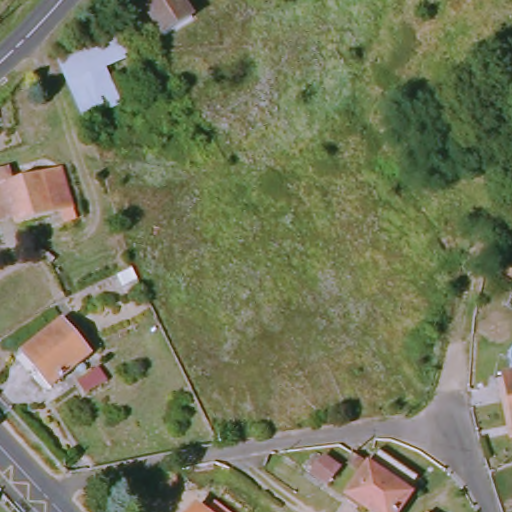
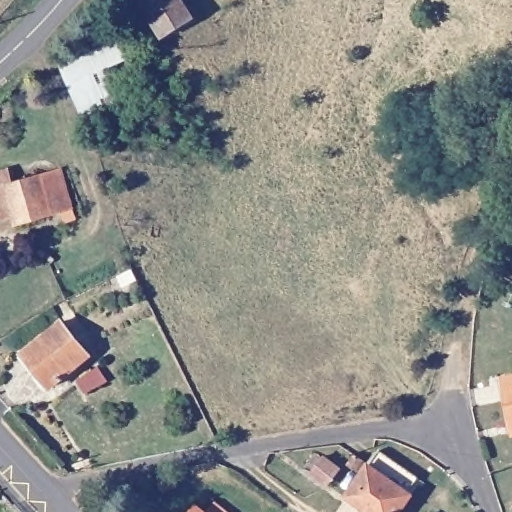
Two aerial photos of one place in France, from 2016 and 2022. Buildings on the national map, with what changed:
unchanged [(138,0),(177,0),(188,16),(160,33),(138,0)]
unchanged [(78,120),(48,60),(91,37),(96,45),(126,30),(133,52),(99,67),(118,102),(78,120)]
unchanged [(10,180),(55,167),(70,217),(59,222),(55,212),(11,227),(7,214),(0,216),(0,168),(5,166),(10,180)]
unchanged [(19,351),(57,321),(85,352),(48,385),(19,351)]
unchanged [(504,377),(512,376),(512,425),(504,377)]
unchanged [(346,495),(378,448),(420,479),(396,512),(369,512),(346,495)]
unchanged [(350,462),(355,453),(364,457),(356,467),(350,462)]
unchanged [(313,472),(324,456),(337,467),(326,482),(313,472)]
unchanged [(163,482),(161,472),(178,468),(181,478),(163,482)]
unchanged [(201,498),(219,512),(190,512),(201,498)]

